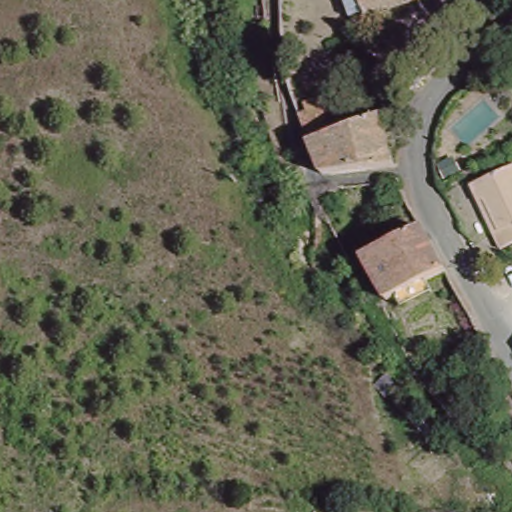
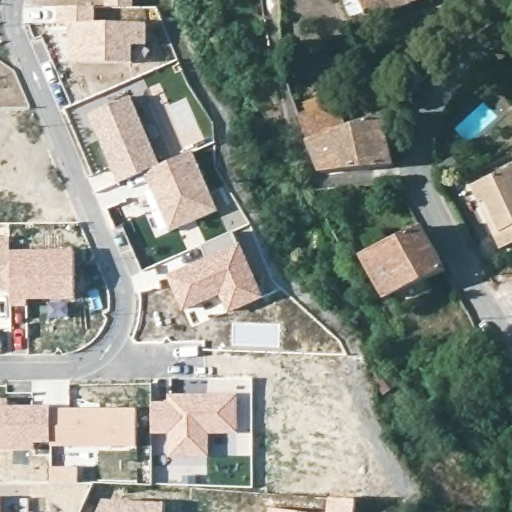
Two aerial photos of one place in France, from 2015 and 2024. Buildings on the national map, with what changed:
new [(148,45),(133,46),(133,63),(69,62),(69,24),(57,25),(56,6),(96,5),(96,0),(135,0),(135,7),(117,9),(96,9),(97,20),(147,24),(148,45)]
unchanged [(405,11),(372,21),(358,26),(350,0),(401,0),(405,11)]
unchanged [(405,11),(401,0),(439,0),(405,11)]
new [(130,96),(160,165),(142,175),(116,185),(88,114),(130,96)]
unchanged [(343,126),(302,142),(293,115),(301,112),(304,116),(330,101),(343,126)]
unchanged [(318,174),(302,142),(343,126),(377,114),(386,161),(318,174)]
new [(160,165),(192,151),(218,211),(169,233),(142,175),(160,165)]
unchanged [(512,167),(512,249),(506,251),(497,235),(482,206),(472,189),(512,167)]
unchanged [(386,302),(364,258),(420,228),(445,271),(386,302)]
new [(207,256),(201,245),(232,230),(264,298),(226,313),(220,298),(203,305),(183,312),(166,275),(207,256)]
new [(10,234),(11,250),(8,292),(0,292),(0,234),(10,234)]
new [(8,292),(11,250),(75,250),(75,300),(26,301),(26,305),(8,305),(8,292)]
new [(209,435),(210,458),(168,458),(168,436),(151,436),(151,401),(168,401),(168,395),(238,395),(239,434),(209,435)]
new [(8,398),(8,406),(51,406),(51,443),(35,444),(35,450),(0,450),(0,399),(8,398)]
new [(51,405),(136,408),(136,446),(51,446),(51,405)]
new [(357,500),(355,512),(328,512),(329,497),(357,500)]
new [(3,512),(0,512),(0,498),(2,498),(3,512)]
new [(165,503),(165,512),(95,512),(100,498),(165,503)]
new [(269,512),(270,507),(310,512),(269,512)]

